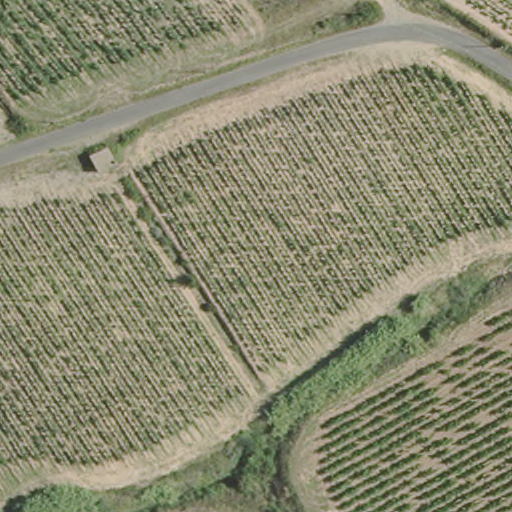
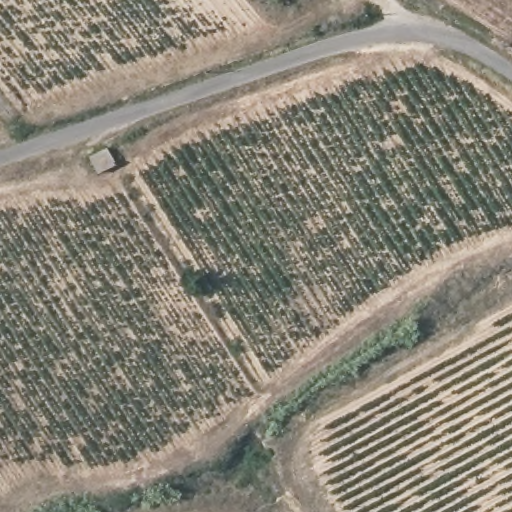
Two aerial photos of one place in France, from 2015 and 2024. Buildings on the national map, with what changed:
unchanged [(95,177),(89,159),(110,149),(120,170),(95,177)]

